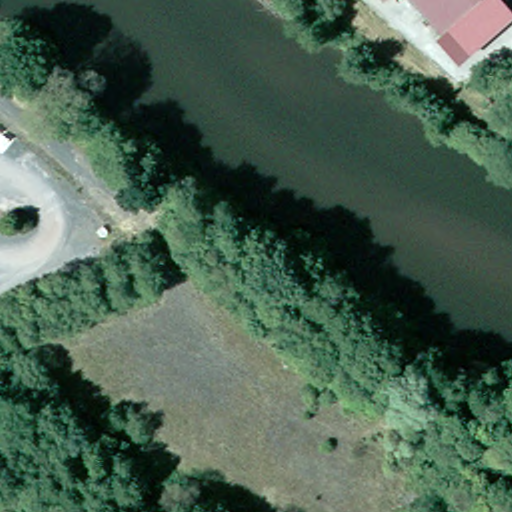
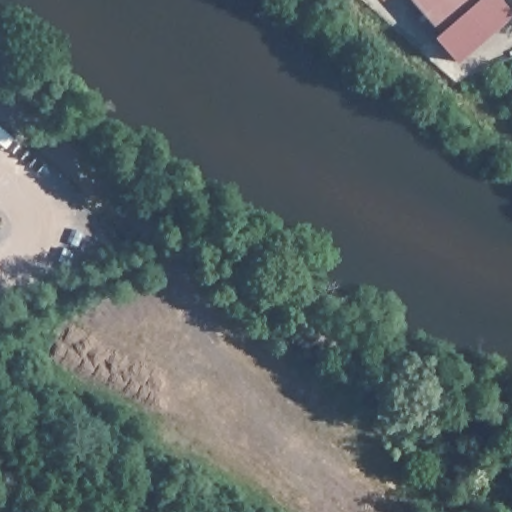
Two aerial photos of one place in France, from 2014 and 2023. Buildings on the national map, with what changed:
unchanged [(479,6),(445,36),(414,0),(474,0),(479,6)]
unchanged [(461,66),(438,41),(445,36),(479,6),(486,0),(502,0),(512,11),(512,23),(461,66)]

